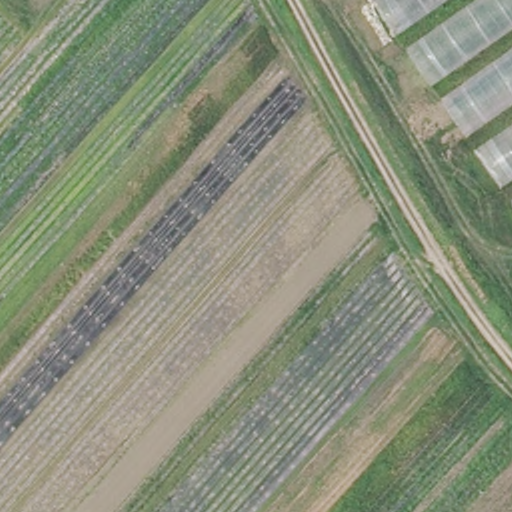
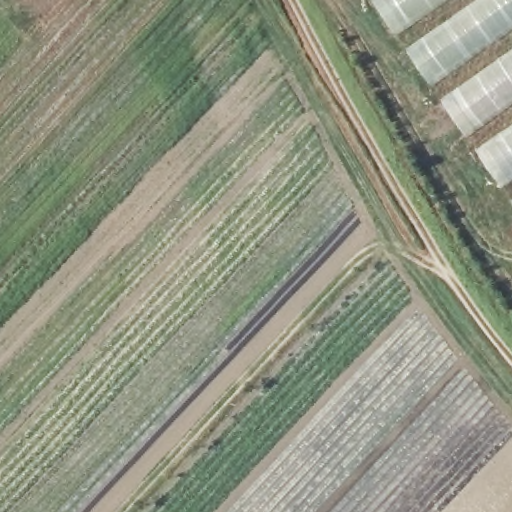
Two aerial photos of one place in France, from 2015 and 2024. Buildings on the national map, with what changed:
unchanged [(512,0),(512,219),(362,0),(512,0)]

